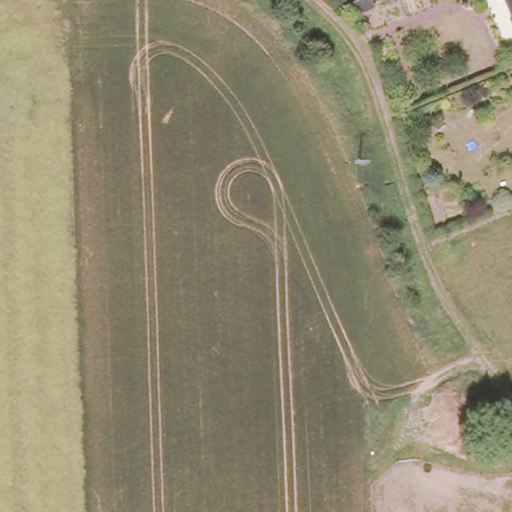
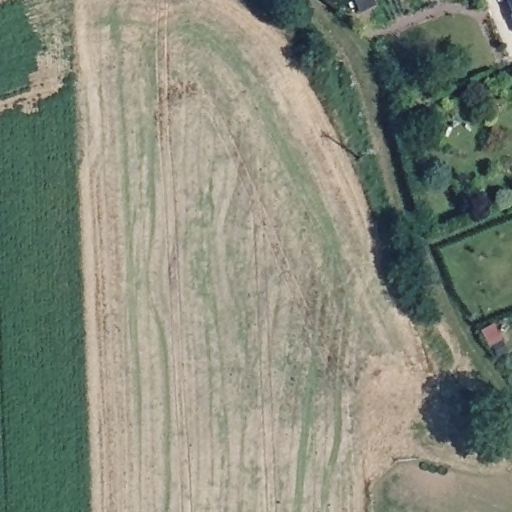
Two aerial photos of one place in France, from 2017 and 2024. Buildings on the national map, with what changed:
unchanged [(365,0),(368,9),(355,15),(350,4),(359,0),(365,0)]

